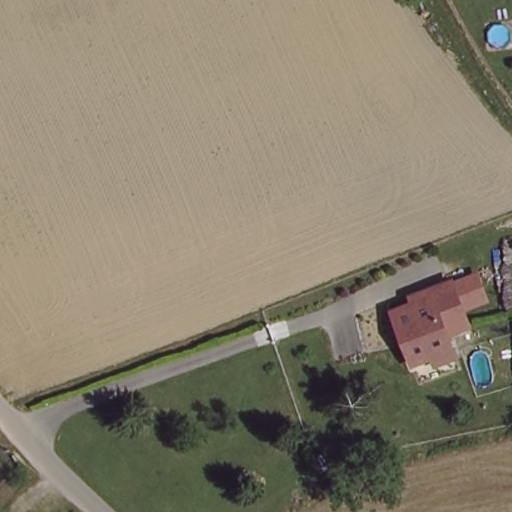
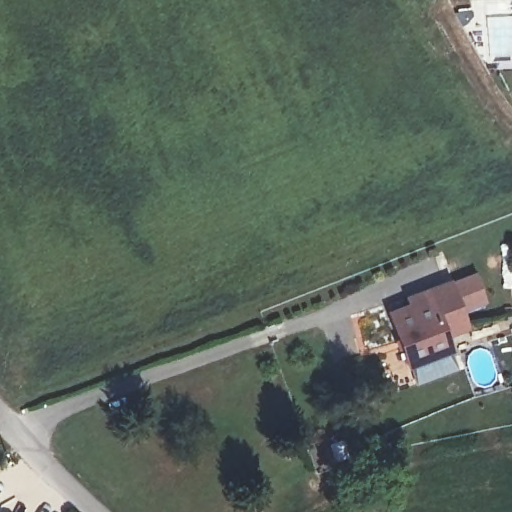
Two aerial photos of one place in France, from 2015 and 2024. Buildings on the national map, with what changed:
unchanged [(423,358),(421,351),(401,356),(388,310),(408,305),(405,294),(424,289),(447,283),(459,326),(438,331),(442,346),(444,353),(423,358)]

